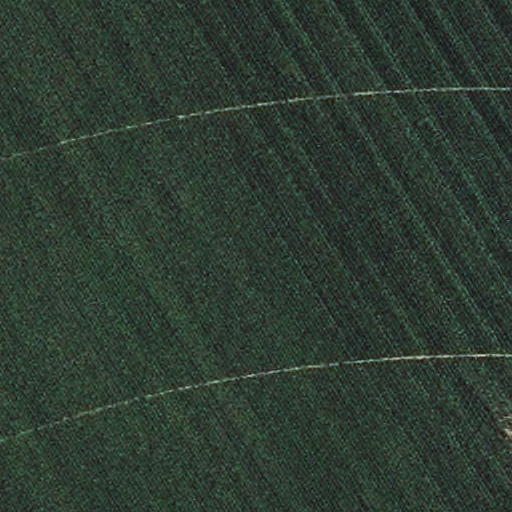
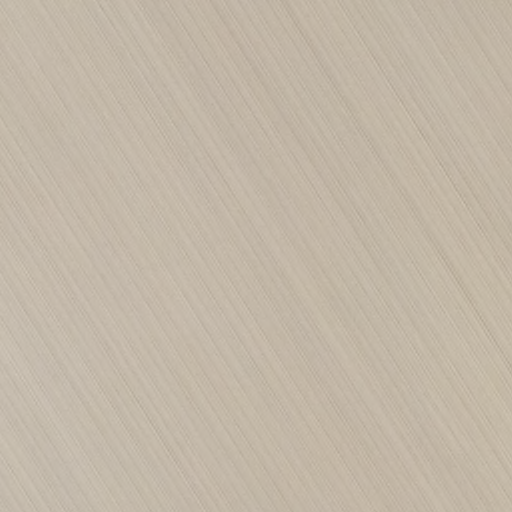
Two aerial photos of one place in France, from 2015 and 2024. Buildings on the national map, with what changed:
[]

